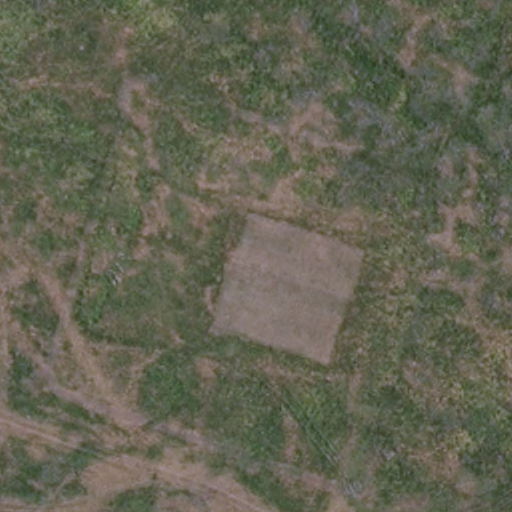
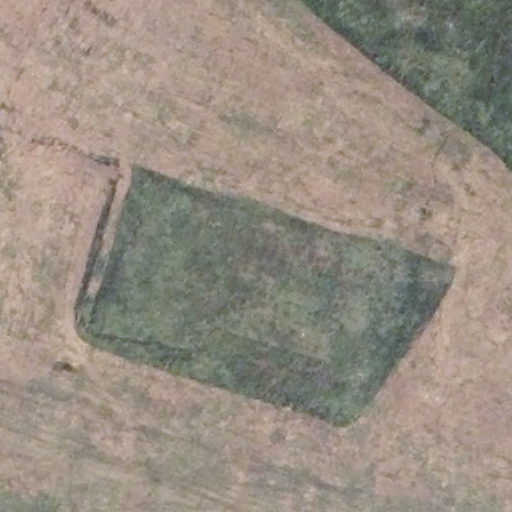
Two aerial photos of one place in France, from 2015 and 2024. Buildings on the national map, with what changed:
[]

